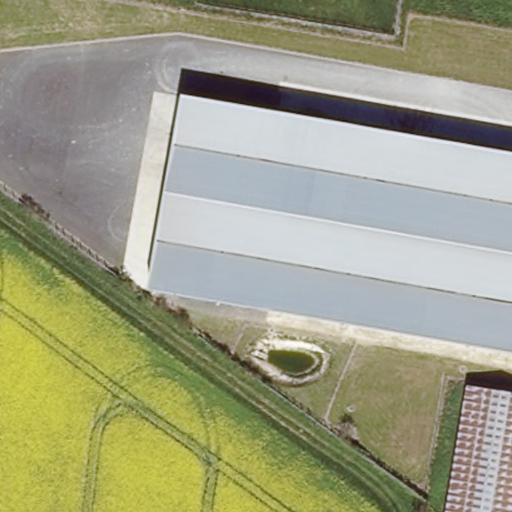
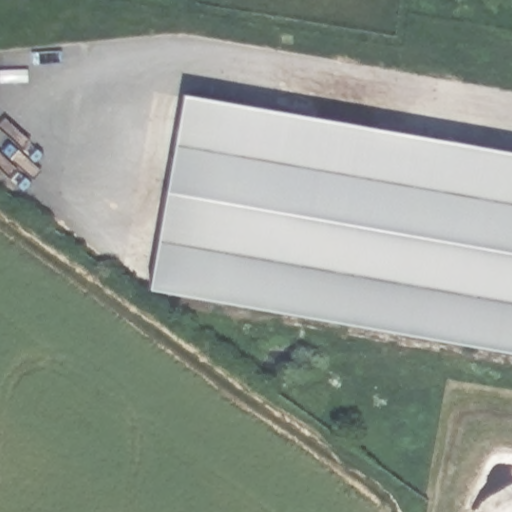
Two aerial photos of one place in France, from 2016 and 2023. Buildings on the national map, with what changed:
unchanged [(186,97),(512,153),(512,353),(152,290),(186,97)]
demolished [(468,388),(512,395),(512,512),(448,512),(448,511),(468,388)]

